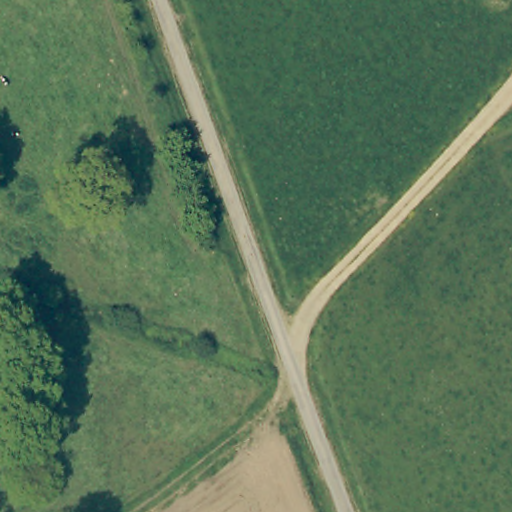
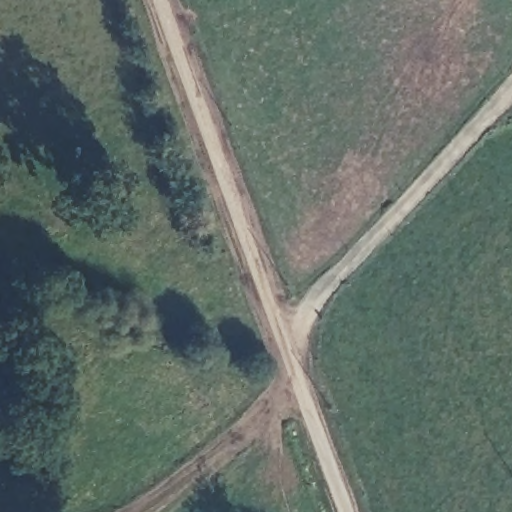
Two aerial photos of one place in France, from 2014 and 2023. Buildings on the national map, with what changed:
[]

